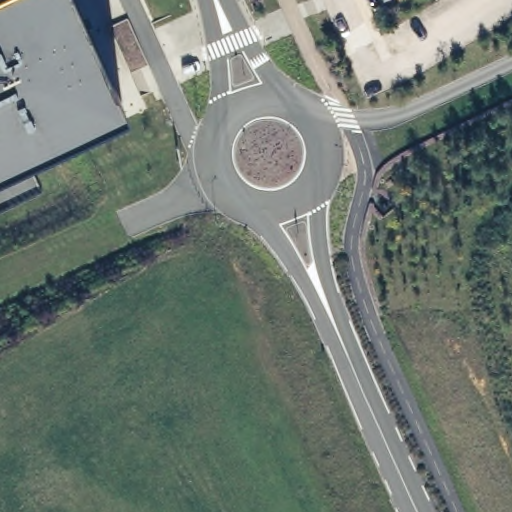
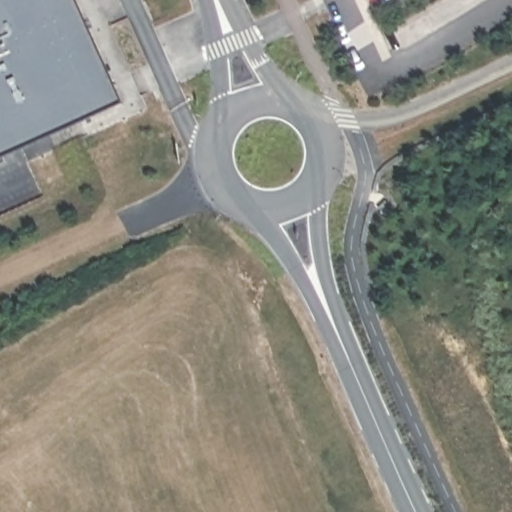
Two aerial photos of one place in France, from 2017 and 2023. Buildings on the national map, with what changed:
unchanged [(75,0),(119,102),(0,157),(0,0),(75,0)]

